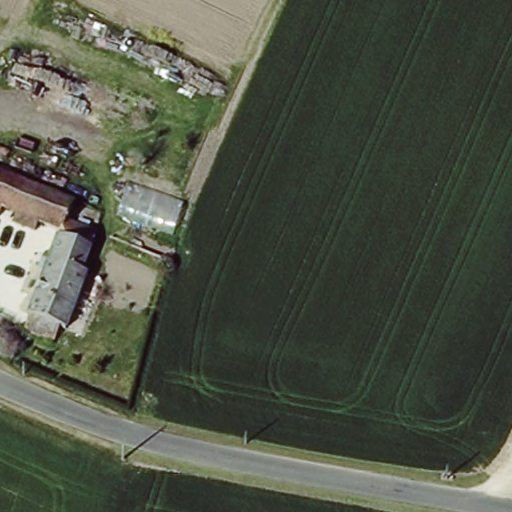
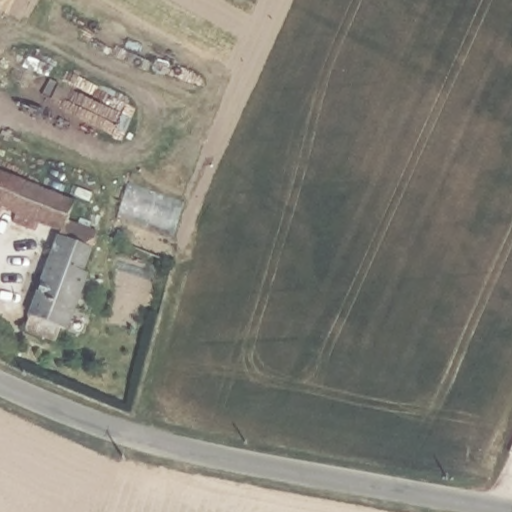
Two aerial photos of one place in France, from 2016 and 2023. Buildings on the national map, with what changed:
unchanged [(87,270),(65,324),(57,321),(50,340),(25,329),(20,327),(59,231),(39,223),(35,231),(12,221),(15,212),(0,206),(0,168),(72,197),(65,216),(97,229),(80,267),(87,270)]

